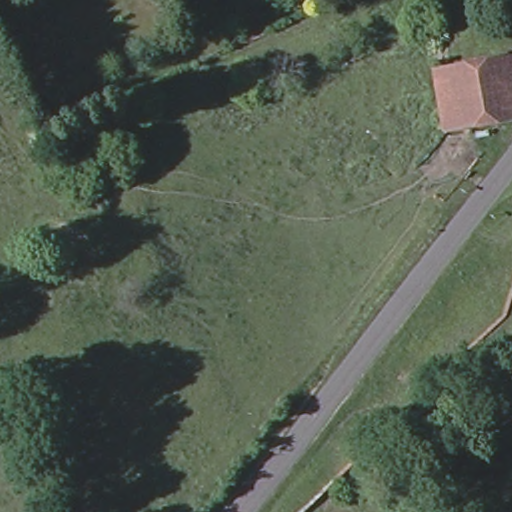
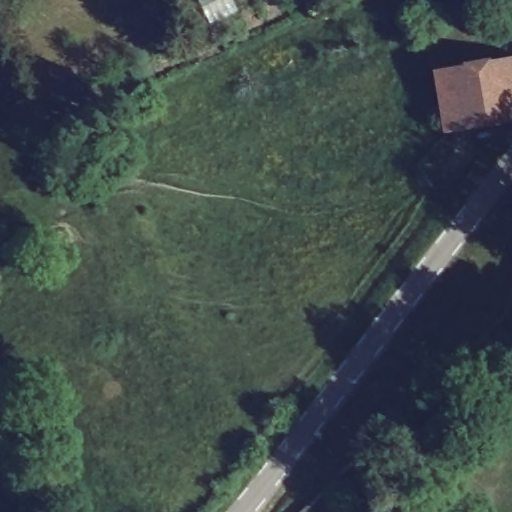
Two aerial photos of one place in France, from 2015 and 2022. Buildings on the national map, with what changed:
unchanged [(512,52),(512,121),(464,129),(444,133),(434,65),(512,52)]

